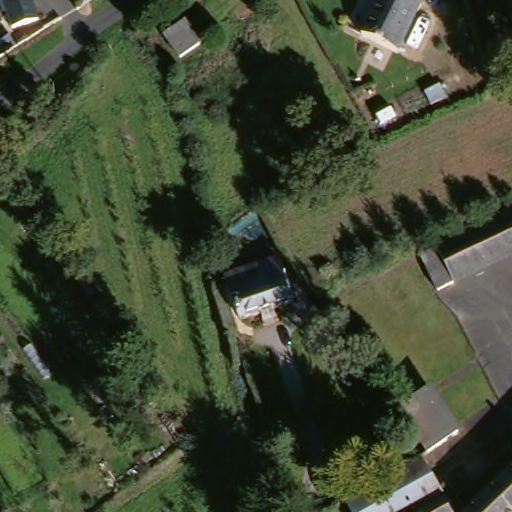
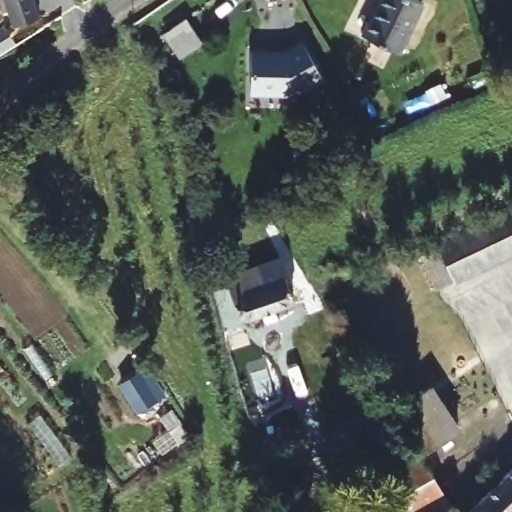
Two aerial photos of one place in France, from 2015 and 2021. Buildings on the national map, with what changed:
unchanged [(43,16),(18,29),(2,0),(34,0),(43,16)]
unchanged [(401,52),(365,35),(382,0),(417,0),(424,4),(401,52)]
unchanged [(204,45),(181,61),(166,39),(188,23),(204,45)]
new [(323,77),(290,94),(252,94),(253,53),(281,54),(303,43),(323,77)]
unchanged [(512,254),(440,291),(421,255),(512,209),(512,254)]
unchanged [(269,315),(258,317),(239,323),(226,280),(279,266),(291,308),(269,315)]
unchanged [(426,386),(457,431),(425,452),(394,407),(426,386)]
unchanged [(448,502),(450,506),(454,512),(351,512),(343,497),(418,456),(448,502)]
unchanged [(512,466),(512,512),(465,512),(501,476),(512,466)]

